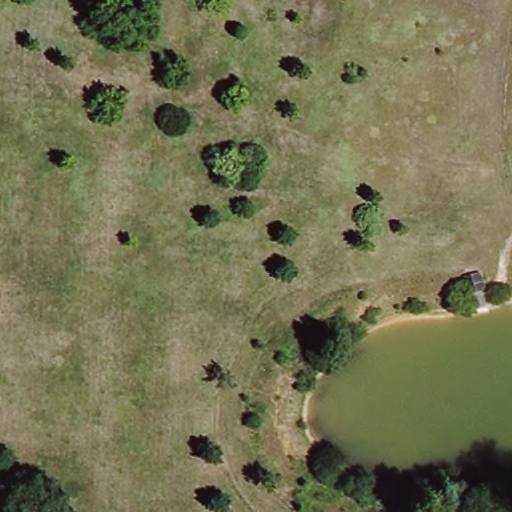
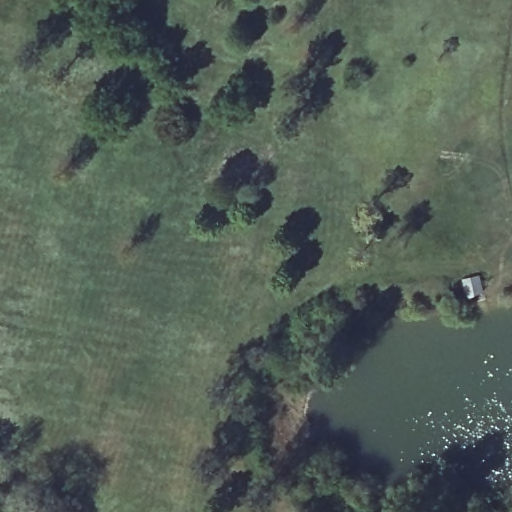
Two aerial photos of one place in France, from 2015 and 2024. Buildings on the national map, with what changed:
[]

